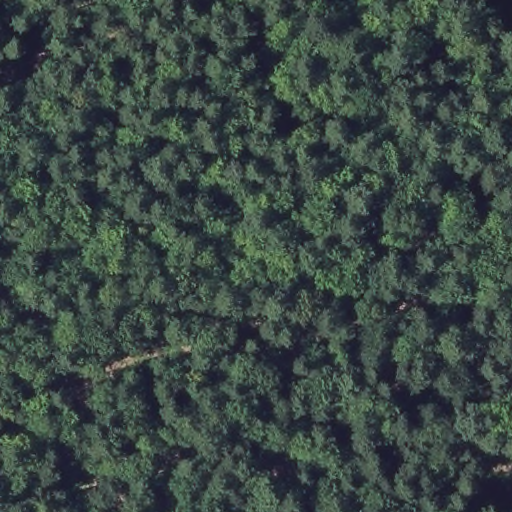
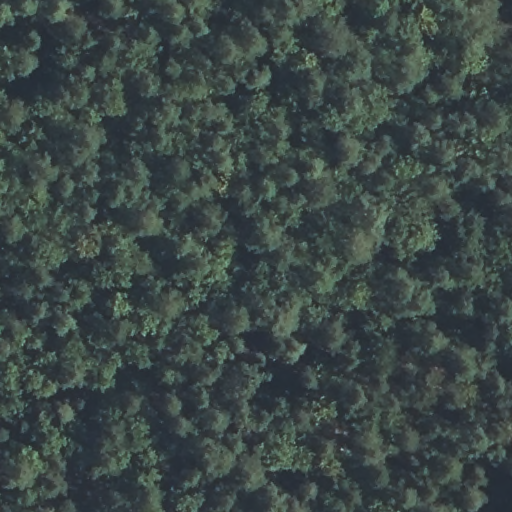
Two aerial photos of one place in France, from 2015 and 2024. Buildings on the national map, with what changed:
[]

